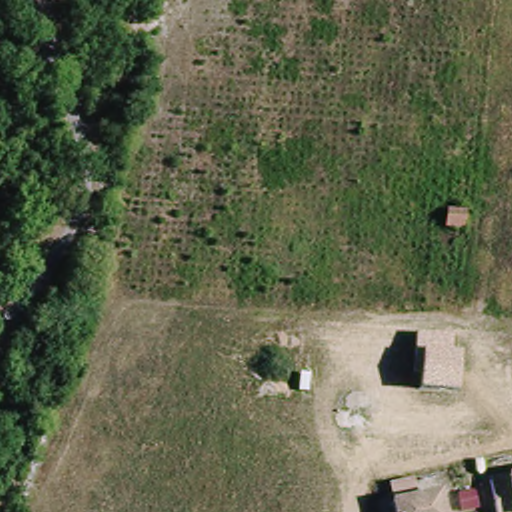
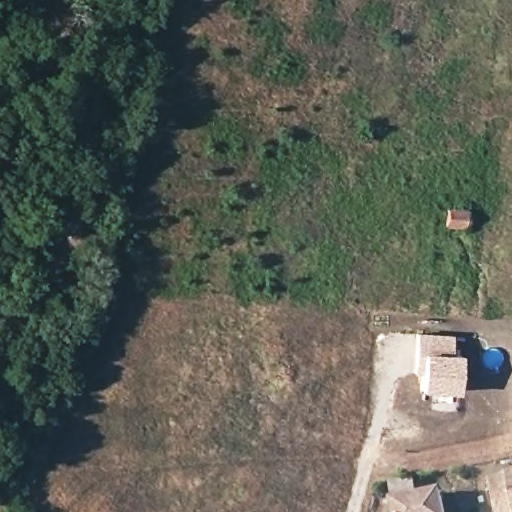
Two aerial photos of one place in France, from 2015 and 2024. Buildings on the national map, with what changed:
unchanged [(451,212),(472,213),(470,231),(451,231),(451,212)]
unchanged [(412,352),(414,331),(453,335),(453,354),(464,354),(461,393),(419,390),(422,353),(412,352)]
unchanged [(485,481),(512,475),(512,512),(491,512),(485,481)]
unchanged [(440,491),(443,512),(388,512),(387,500),(440,491)]

